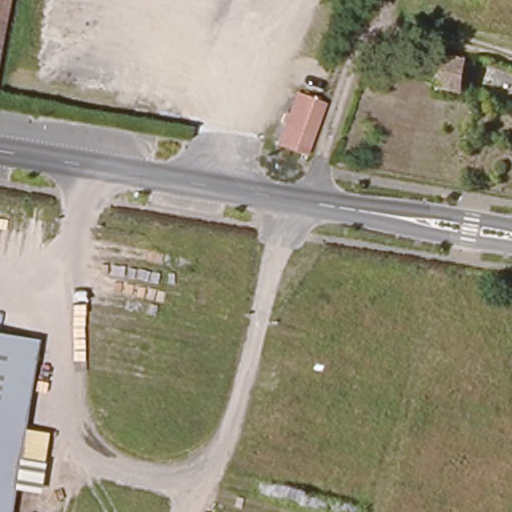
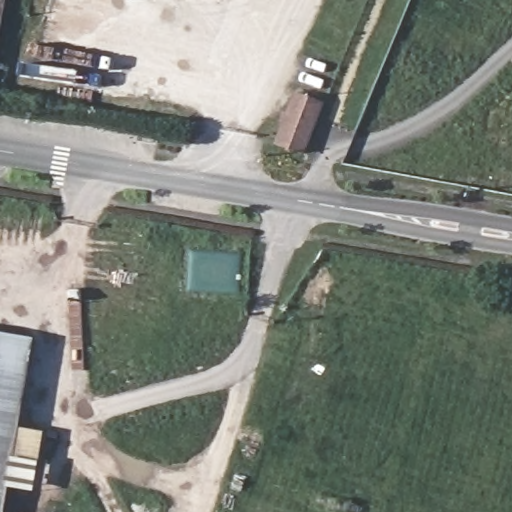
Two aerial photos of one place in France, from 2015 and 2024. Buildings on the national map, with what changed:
unchanged [(0,45),(0,0),(10,0),(0,45)]
unchanged [(435,83),(436,78),(440,54),(471,60),(465,88),(435,83)]
unchanged [(285,145),(304,94),(329,103),(310,153),(285,145)]
unchanged [(8,512),(0,512),(0,334),(37,339),(8,512)]

